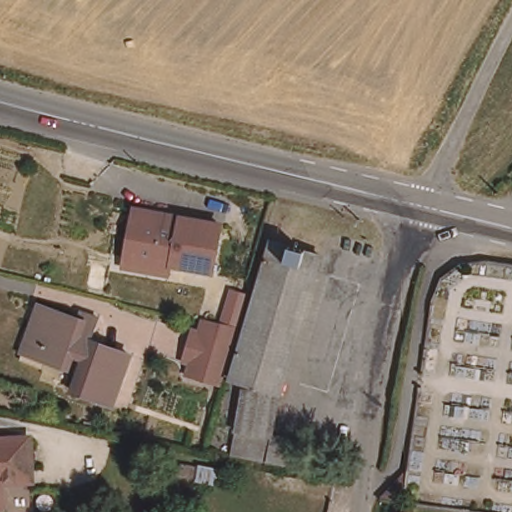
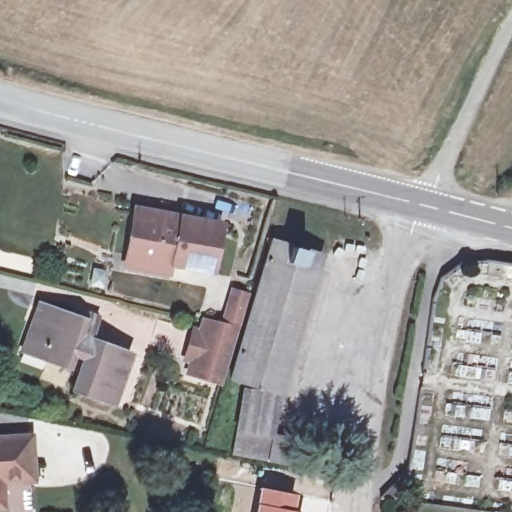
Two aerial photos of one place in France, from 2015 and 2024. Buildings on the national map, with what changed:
unchanged [(134,217),(135,209),(164,214),(222,224),(212,271),(175,265),(173,264),(171,273),(125,265),(127,255),(134,217)]
unchanged [(284,244),(300,249),(322,255),(321,255),(280,392),(230,378),(270,240),(284,244)]
unchanged [(77,389),(89,356),(79,352),(74,366),(47,357),(29,350),(32,340),(40,317),(45,303),(51,305),(87,319),(90,312),(97,315),(110,320),(102,341),(102,342),(136,353),(124,386),(118,403),(112,401),(77,389)]
unchanged [(191,360),(185,358),(192,334),(198,336),(204,317),(240,326),(224,379),(222,386),(186,375),(189,368),(191,360)]
unchanged [(237,429),(245,388),(280,395),(272,435),(305,440),(300,467),(267,461),(233,455),(237,429)]
unchanged [(2,481),(2,482),(3,507),(0,508),(0,439),(30,437),(30,440),(32,467),(10,468),(10,472),(11,480),(2,481)]
unchanged [(182,462),(199,465),(197,479),(179,475),(182,462)]
unchanged [(202,466),(229,471),(227,484),(199,478),(202,466)]
unchanged [(383,495),(387,490),(392,493),(400,485),(400,476),(407,477),(404,500),(381,497),(383,495)]
new [(257,485),(297,492),(295,508),(303,510),(303,512),(253,512),(257,485)]
unchanged [(399,511),(405,512),(399,512),(399,511)]

